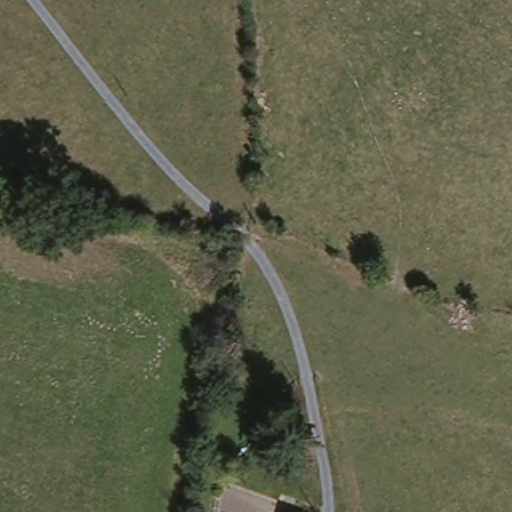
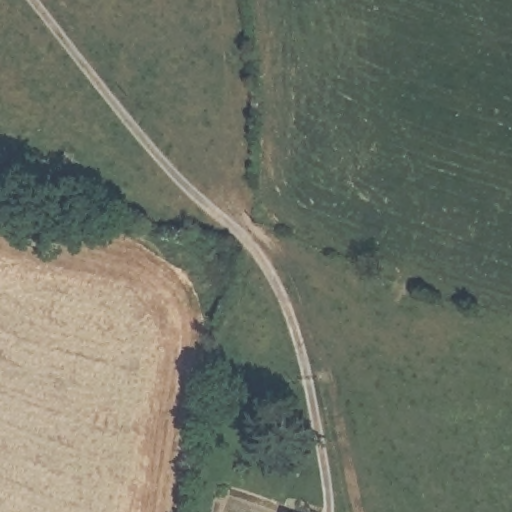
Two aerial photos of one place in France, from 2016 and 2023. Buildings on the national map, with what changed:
unchanged [(288,511),(291,512),(288,512),(288,511)]

